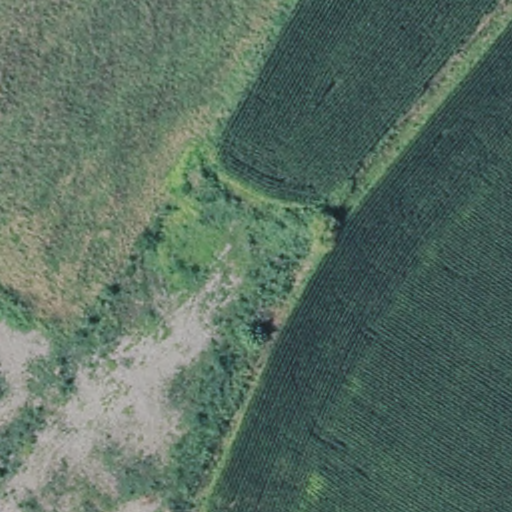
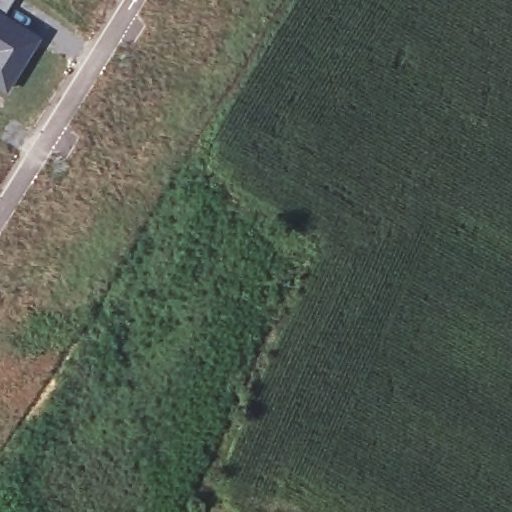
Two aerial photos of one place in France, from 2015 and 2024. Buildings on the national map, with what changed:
new [(43,36),(6,93),(0,89),(0,0),(13,0),(6,12),(43,36)]

